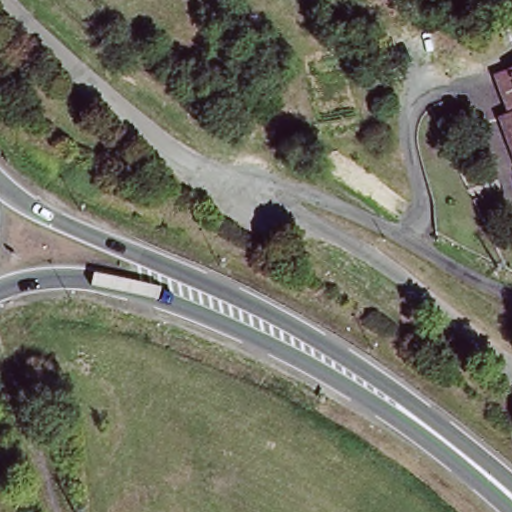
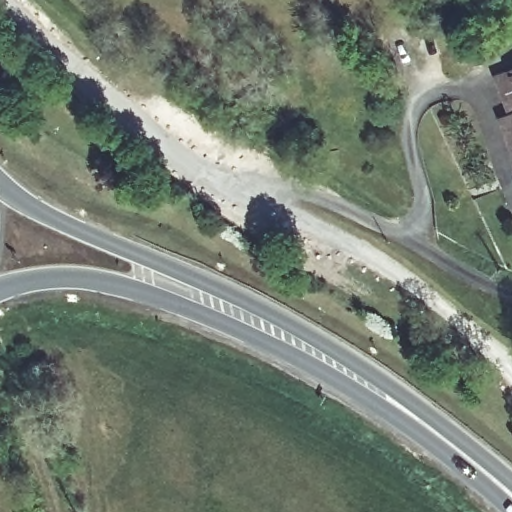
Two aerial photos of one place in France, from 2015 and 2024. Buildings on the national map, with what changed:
unchanged [(221,87),(211,106),(190,93),(201,75),(221,87)]

